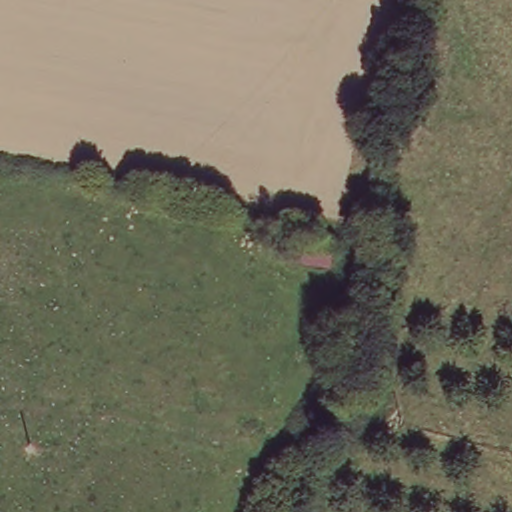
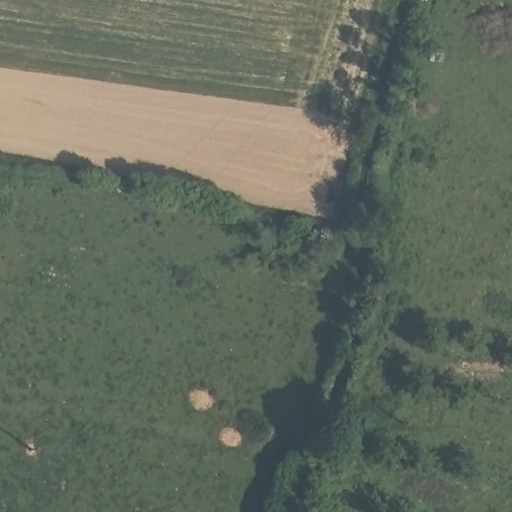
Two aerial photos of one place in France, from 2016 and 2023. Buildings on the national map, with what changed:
unchanged [(333,245),(328,267),(287,260),(291,238),(333,245)]

